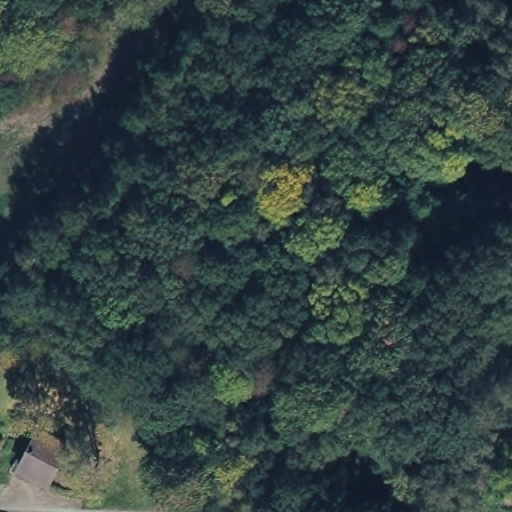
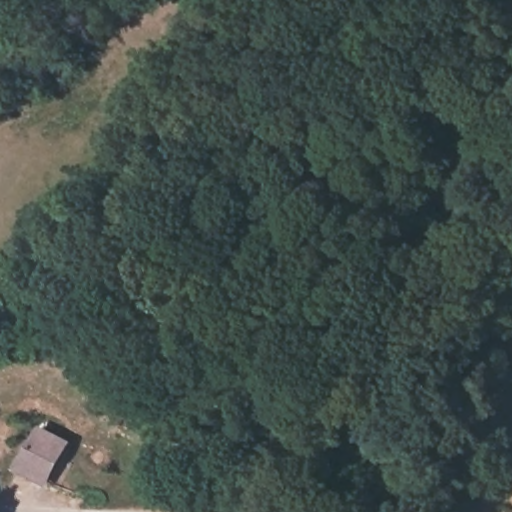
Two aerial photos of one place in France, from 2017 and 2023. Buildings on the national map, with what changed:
unchanged [(47,478),(20,462),(44,424),(70,438),(47,478)]

